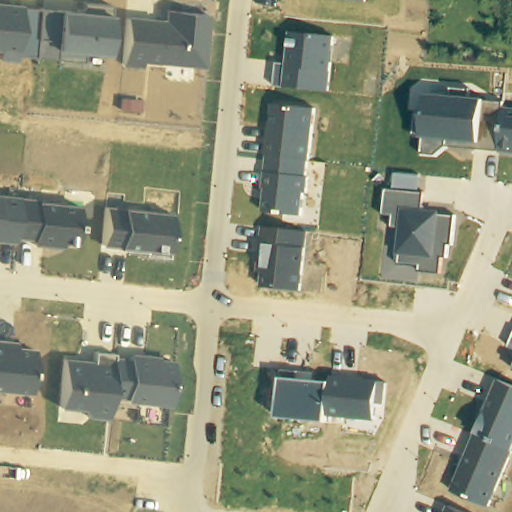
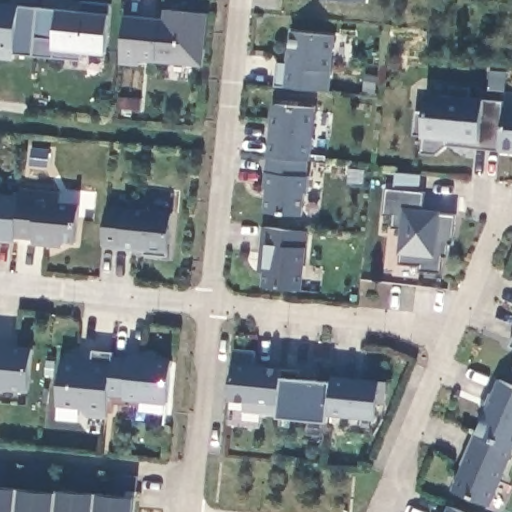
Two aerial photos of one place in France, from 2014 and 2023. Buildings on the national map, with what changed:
unchanged [(340,0),(368,0),(368,2),(340,0)]
unchanged [(20,5),(20,9),(57,11),(81,13),(80,3),(110,5),(110,15),(106,53),(83,51),(81,61),(16,55),(15,60),(0,60),(0,3),(20,5)]
unchanged [(164,20),(165,10),(208,15),(204,66),(140,61),(139,66),(120,64),(123,15),(164,20)]
unchanged [(334,36),(330,92),(285,88),(276,87),(278,63),(287,64),(290,34),(334,36)]
unchanged [(452,87),(470,90),(469,98),(484,100),(502,102),(502,108),(512,109),(512,152),(499,151),(447,147),(436,156),(423,155),(425,137),(420,137),(425,95),(451,97),(452,87)]
unchanged [(314,109),(304,216),(265,213),(273,105),(314,109)]
unchanged [(422,175),(420,192),(424,193),(423,210),(439,212),(438,215),(457,216),(454,245),(449,245),(448,258),(443,258),(442,275),(422,272),(422,265),(399,263),(402,228),(393,227),(395,216),(385,215),(387,190),(395,190),(396,174),(422,175)]
unchanged [(80,205),(75,245),(65,245),(65,247),(34,245),(34,240),(15,239),(15,242),(0,241),(0,196),(80,205)]
unchanged [(124,209),(173,215),(169,251),(121,247),(100,246),(104,207),(124,209)]
unchanged [(306,231),(302,291),(263,288),(264,272),(260,272),(265,227),(306,231)]
unchanged [(15,341),(14,346),(33,348),(28,392),(0,390),(0,340),(15,341)]
unchanged [(512,342),(512,348),(510,347),(512,342)]
unchanged [(283,378),(279,417),(243,412),(245,402),(230,401),(234,349),(256,352),(255,367),(283,370),(283,378)]
unchanged [(93,361),(94,351),(113,353),(113,357),(129,359),(129,353),(172,358),(168,404),(124,401),(124,397),(108,397),(107,418),(87,416),(81,409),(56,406),(62,358),(93,361)]
unchanged [(283,370),(316,372),(315,382),(333,384),(333,376),(379,381),(387,382),(385,405),(377,404),(376,420),(328,415),(327,422),(279,417),(283,378),(283,370)]
unchanged [(512,385),(512,453),(490,506),(452,491),(500,380),(512,385)]
new [(5,463),(4,487),(19,489),(22,465),(43,468),(43,491),(56,493),(56,489),(74,491),(76,471),(99,473),(98,494),(114,495),(115,475),(137,477),(136,497),(135,512),(0,512),(0,463),(5,463)]
unchanged [(462,512),(447,512),(449,506),(462,512)]

